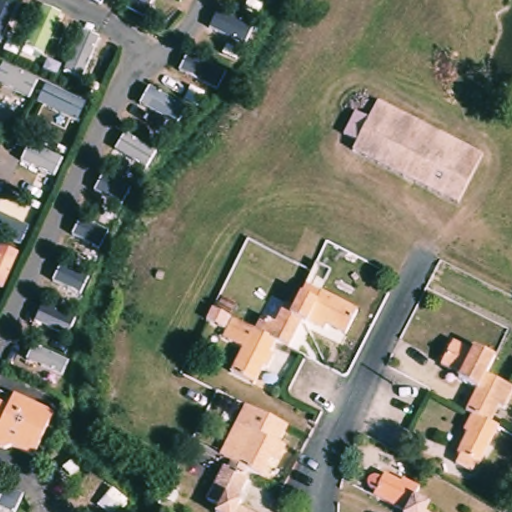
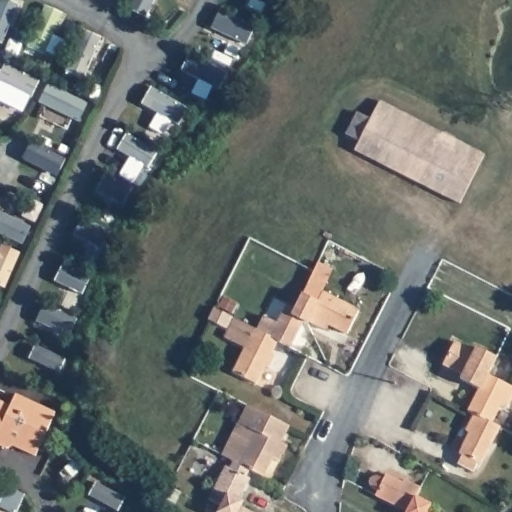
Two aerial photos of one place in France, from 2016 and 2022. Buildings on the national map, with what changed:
unchanged [(354,150),(379,101),(484,155),(459,205),(354,150)]
unchanged [(358,311),(346,334),(327,325),(325,330),(309,322),(308,324),(302,322),(289,348),(277,341),(275,341),(255,330),(263,316),(276,323),(286,304),(294,308),(305,284),(358,311)]
unchanged [(225,329),(207,320),(213,308),(231,318),(225,329)]
unchanged [(275,341),(277,341),(271,353),(274,355),(269,367),(268,368),(264,366),(255,384),(231,372),(243,348),(223,338),(233,319),(255,330),(275,341)]
unchanged [(512,388),(512,394),(504,409),(499,406),(491,423),(482,418),(473,414),(467,410),(478,388),(459,379),(461,374),(442,364),(453,342),(473,351),(475,347),(496,358),(487,375),(512,388)]
unchanged [(34,456),(11,446),(4,448),(0,446),(0,401),(9,406),(15,394),(54,413),(34,456)]
unchanged [(278,462),(272,458),(263,477),(249,470),(240,465),(232,461),(221,455),(230,436),(243,443),(250,429),(237,423),(246,405),(288,427),(280,443),(286,446),(278,462)]
unchanged [(499,427),(480,465),(476,463),(472,472),(457,464),(461,455),(457,453),(468,433),(464,431),(473,414),(482,418),(491,423),(499,427)]
unchanged [(250,479),(239,500),(243,502),(240,507),(250,512),(218,512),(220,506),(208,500),(225,466),(228,468),(232,461),(240,465),(249,470),(245,477),(250,479)]
unchanged [(369,496),(372,491),(365,487),(363,484),(363,480),(365,477),(369,476),(372,476),(378,479),(380,474),(398,483),(399,480),(414,488),(410,497),(425,504),(421,512),(401,512),(401,511),(369,496)]

